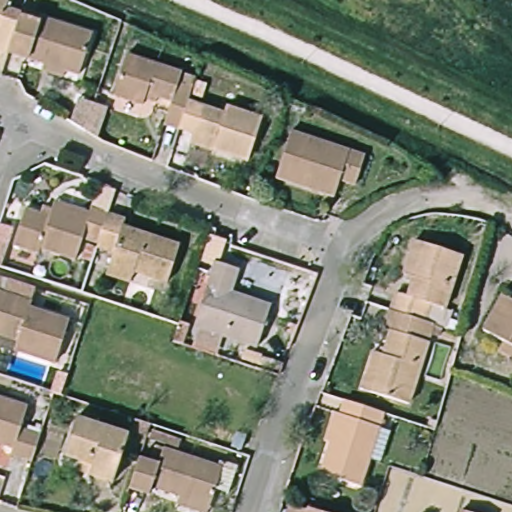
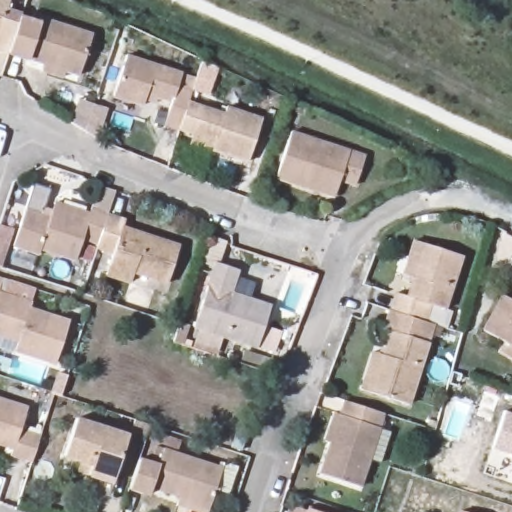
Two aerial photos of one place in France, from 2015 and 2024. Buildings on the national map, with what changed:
unchanged [(7,7),(20,12),(6,46),(0,44),(0,0),(9,0),(7,7)]
unchanged [(40,68),(44,60),(6,46),(20,12),(42,20),(43,14),(93,35),(76,71),(65,67),(61,76),(40,68)]
unchanged [(177,132),(160,126),(169,101),(143,94),(139,108),(113,98),(130,54),(180,72),(170,97),(187,102),(211,109),(226,115),(228,110),(261,122),(243,169),(212,158),(186,150),(190,137),(177,132)]
unchanged [(102,138),(90,131),(77,124),(85,101),(99,105),(111,110),(102,138)]
unchanged [(367,157),(355,185),(340,180),(332,196),(276,176),(295,131),(367,157)]
unchanged [(80,240),(71,260),(38,247),(34,256),(8,245),(21,209),(47,217),(50,209),(55,197),(91,210),(107,216),(96,247),(80,240)]
unchanged [(100,275),(103,266),(108,254),(95,250),(96,247),(107,216),(123,222),(122,230),(176,252),(164,288),(128,275),(125,284),(100,275)]
unchanged [(444,310),(428,305),(423,319),(396,310),(390,308),(396,290),(408,294),(413,278),(404,275),(415,241),(425,245),(461,257),(444,310)]
unchanged [(192,340),(196,327),(192,325),(214,260),(231,266),(245,270),(237,291),(270,302),(267,313),(256,346),(218,334),(213,347),(192,340)]
unchanged [(2,293),(31,302),(28,310),(66,325),(52,363),(12,350),(16,340),(0,335),(0,279),(6,281),(2,293)]
unchanged [(503,340),(482,326),(502,295),(512,300),(512,359),(497,350),(503,340)]
unchanged [(372,346),(385,350),(391,329),(385,326),(390,308),(396,310),(423,319),(440,324),(413,403),(371,390),(360,385),(372,346)]
unchanged [(55,392),(61,372),(70,375),(67,382),(63,395),(55,392)]
unchanged [(380,414),(354,484),(315,471),(320,454),(340,400),(380,414)]
unchanged [(26,410),(22,425),(47,435),(37,464),(15,457),(19,446),(1,440),(0,445),(0,402),(26,410)]
new [(512,455),(493,449),(504,410),(512,413),(512,455)]
unchanged [(147,437),(132,431),(137,416),(152,421),(147,437)]
unchanged [(77,455),(66,450),(77,418),(126,435),(108,481),(89,474),(73,467),(77,455)]
unchanged [(240,445),(236,451),(226,447),(230,440),(240,445)]
unchanged [(148,487),(143,500),(125,493),(137,455),(154,462),(159,449),(220,471),(221,466),(236,471),(227,497),(213,492),(207,509),(206,512),(169,512),(175,497),(148,487)]
new [(512,471),(512,473),(511,472),(512,471)]
unchanged [(300,512),(295,512),(295,510),(300,512)]
unchanged [(460,512),(461,510),(468,512),(460,512)]

